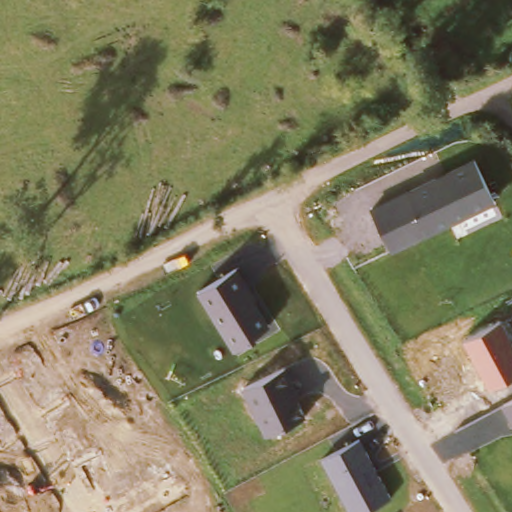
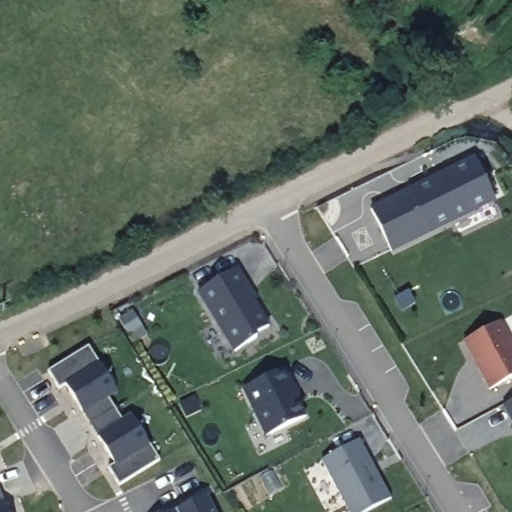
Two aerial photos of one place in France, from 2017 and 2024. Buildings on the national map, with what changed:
unchanged [(370,209),(435,177),(436,180),(446,175),(445,172),(474,158),(493,198),(390,249),(370,209)]
unchanged [(198,292),(237,269),(271,327),(234,352),(198,292)]
unchanged [(501,323),(512,345),(512,378),(489,389),(464,342),(501,323)]
new [(60,384),(49,366),(90,340),(118,386),(109,391),(124,416),(133,411),(162,455),(120,481),(109,463),(115,458),(66,379),(60,384)]
unchanged [(242,389),(284,369),(306,418),(264,437),(242,389)]
unchanged [(512,400),(512,424),(502,405),(512,400)]
unchanged [(322,459),(360,439),(390,497),(364,512),(349,512),(322,459)]
new [(11,512),(0,512),(0,486),(11,512)]
new [(208,492),(218,512),(166,512),(208,492)]

